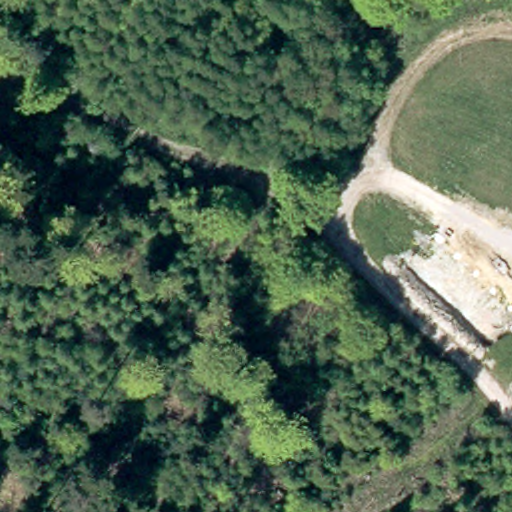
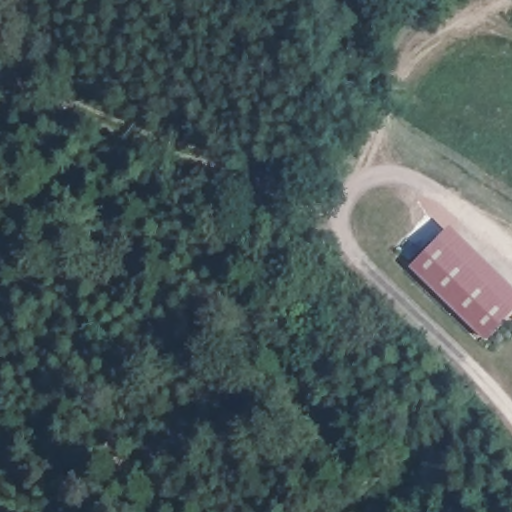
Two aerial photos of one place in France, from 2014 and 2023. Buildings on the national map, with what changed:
demolished [(432,201),(463,207),(454,249),(424,244),(432,201)]
new [(512,312),(485,339),(410,265),(451,224),(512,284),(512,312)]

